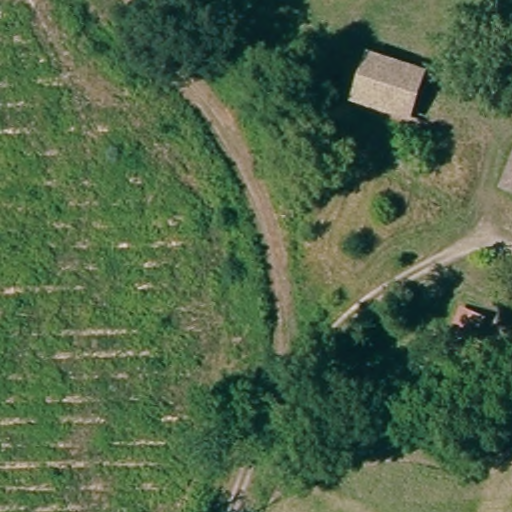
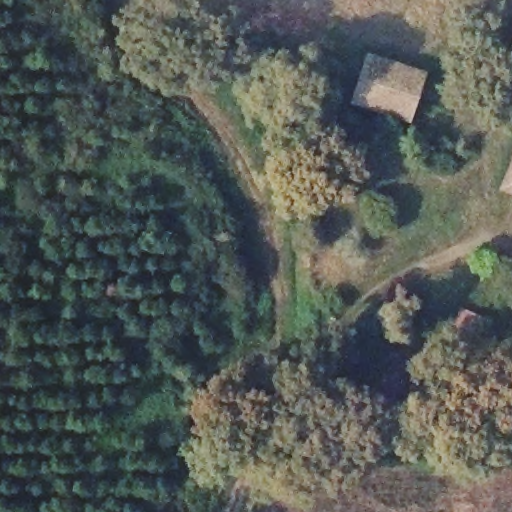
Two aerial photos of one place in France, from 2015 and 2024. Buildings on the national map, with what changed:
unchanged [(361,53),(420,69),(416,90),(357,72),(361,53)]
unchanged [(357,72),(416,90),(411,119),(352,99),(357,72)]
unchanged [(507,181),(512,166),(512,184),(507,181)]
unchanged [(460,368),(418,350),(423,334),(430,330),(465,346),(460,368)]

